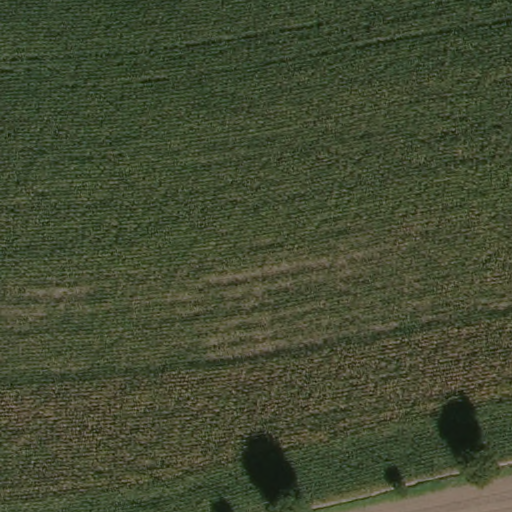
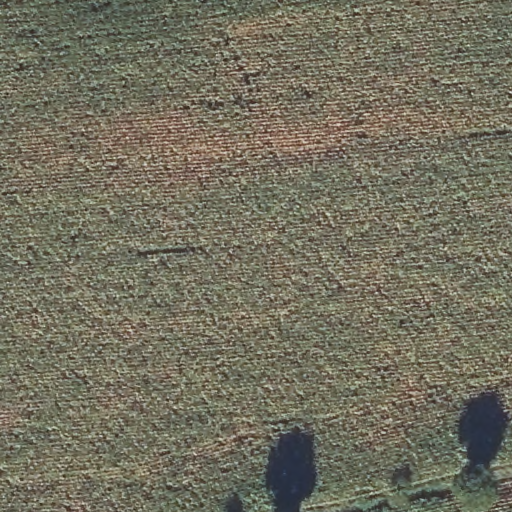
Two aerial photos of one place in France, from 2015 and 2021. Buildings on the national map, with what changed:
[]

